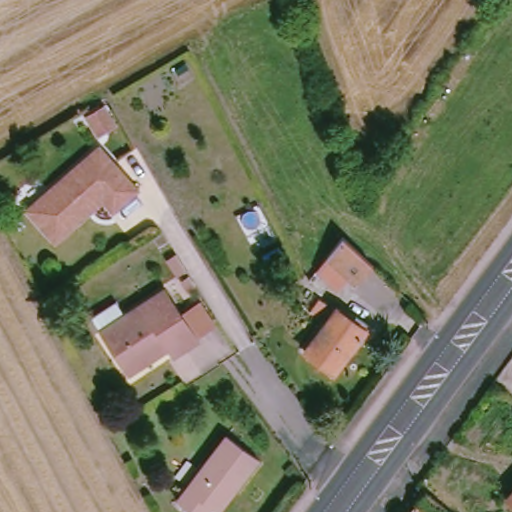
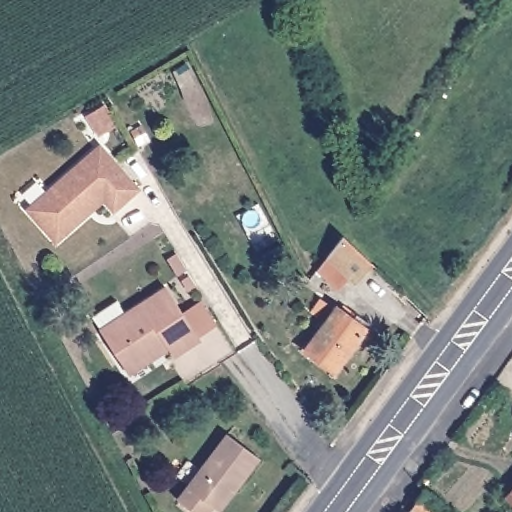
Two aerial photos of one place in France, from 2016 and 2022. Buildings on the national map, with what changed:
unchanged [(104,107),(115,125),(97,135),(86,117),(104,107)]
unchanged [(49,231),(20,202),(94,137),(137,189),(115,209),(105,199),(72,227),(57,240),(49,231)]
unchanged [(339,238),(367,266),(355,282),(325,257),(339,238)]
unchanged [(112,298),(120,312),(160,287),(177,314),(194,303),(207,326),(190,336),(192,340),(165,355),(157,342),(117,366),(95,328),(86,313),(112,298)]
unchanged [(364,331),(330,374),(302,352),(335,307),(364,331)]
unchanged [(254,462),(227,495),(222,491),(204,512),(188,512),(170,498),(222,436),(254,462)]
unchanged [(414,507),(433,485),(452,502),(444,512),(419,512),(414,507)]
unchanged [(512,504),(505,497),(512,488),(512,504)]

